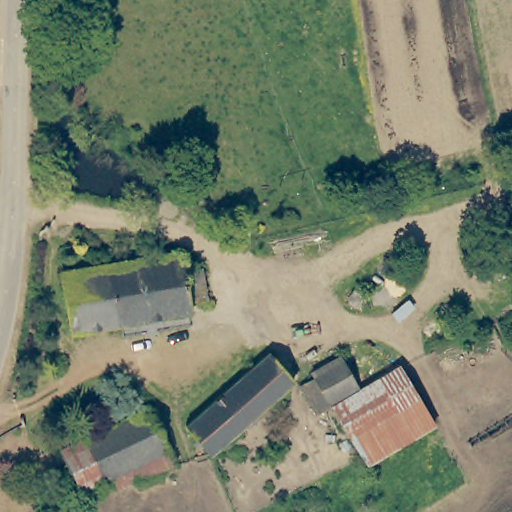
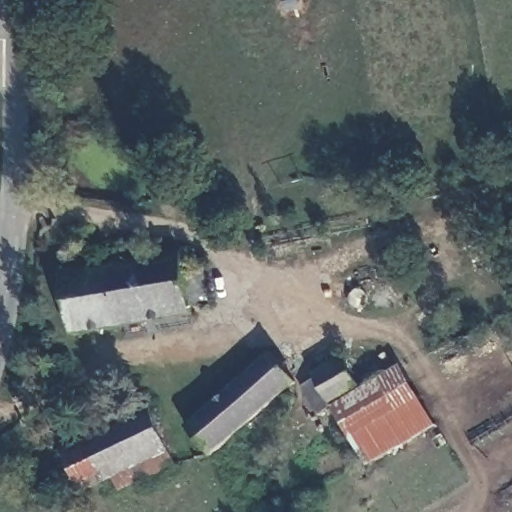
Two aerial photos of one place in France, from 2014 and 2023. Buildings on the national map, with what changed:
unchanged [(145,257),(181,252),(184,271),(202,267),(207,297),(189,300),(190,312),(157,317),(145,257)]
unchanged [(145,257),(157,317),(121,325),(107,264),(145,257)]
unchanged [(121,325),(73,333),(62,271),(107,264),(121,325)]
unchanged [(367,295),(366,302),(362,305),(357,306),(352,302),(351,297),(352,293),(355,291),(362,290),(367,295)]
unchanged [(295,383),(211,452),(187,422),(272,353),(295,383)]
unchanged [(361,386),(336,398),(317,408),(301,385),(315,377),(312,371),(343,356),(361,386)]
unchanged [(440,428),(370,463),(336,398),(361,386),(407,363),(440,428)]
unchanged [(107,477),(85,438),(147,406),(167,444),(114,473),(107,477)]
unchanged [(107,477),(83,490),(64,449),(85,438),(107,477)]
unchanged [(176,463),(142,482),(139,478),(122,486),(114,473),(167,444),(176,463)]

